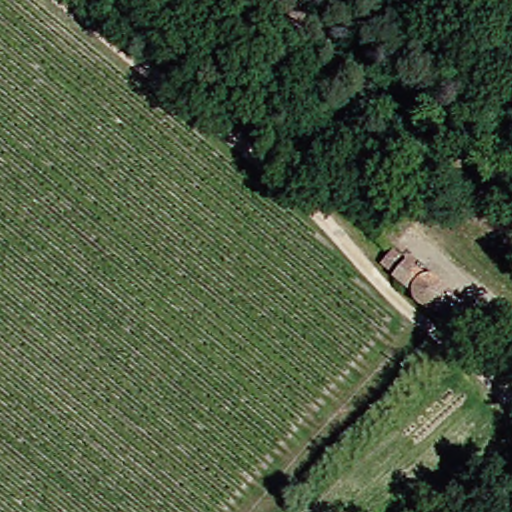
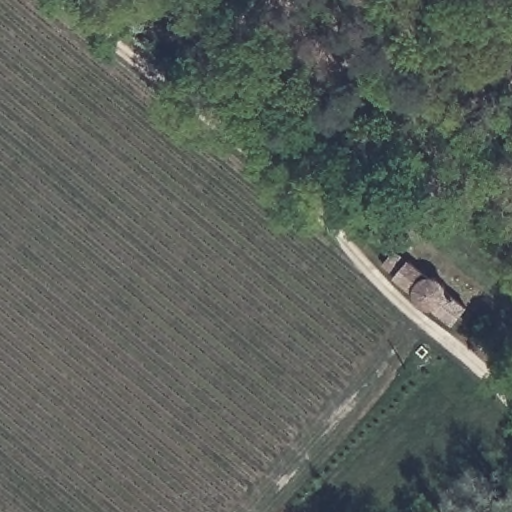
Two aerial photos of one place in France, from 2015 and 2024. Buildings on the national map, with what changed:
unchanged [(379,249),(384,244),(401,259),(409,251),(422,263),(417,268),(451,300),(432,317),(417,304),(411,310),(398,298),(401,296),(376,273),(383,266),(372,256),(379,249)]

